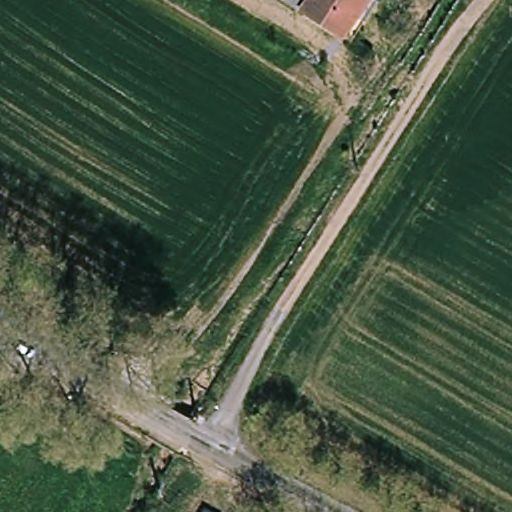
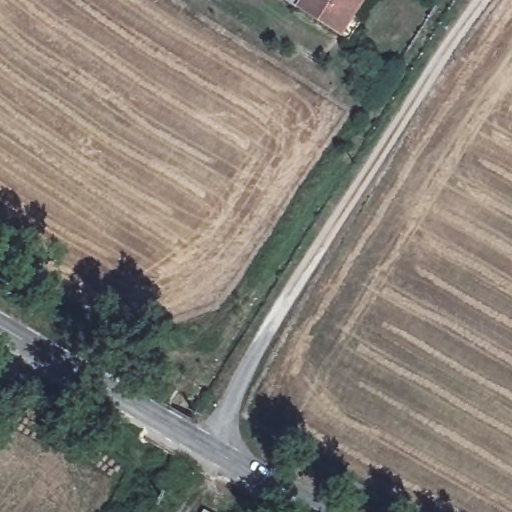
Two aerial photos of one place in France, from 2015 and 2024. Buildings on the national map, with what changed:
unchanged [(296,4),(291,0),(299,0),(296,4)]
unchanged [(350,39),(341,33),(296,4),(299,0),(373,0),(350,39)]
unchanged [(186,471),(199,478),(191,491),(179,484),(186,471)]

